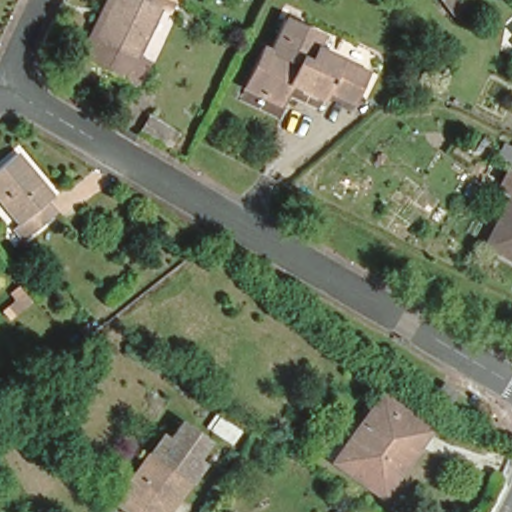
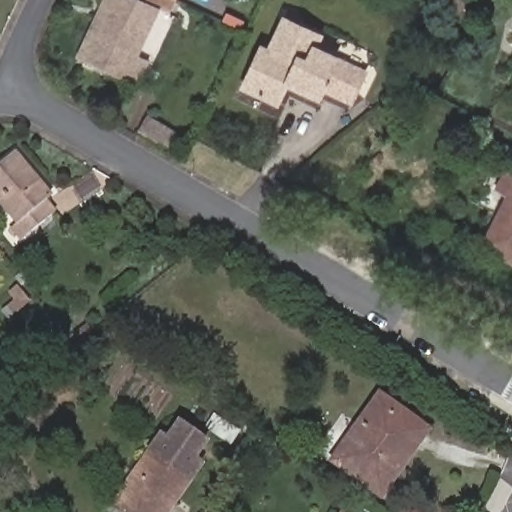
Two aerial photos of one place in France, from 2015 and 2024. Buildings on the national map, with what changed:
unchanged [(166,21),(155,15),(119,86),(80,66),(76,64),(107,0),(159,0),(173,7),(166,21)]
unchanged [(159,0),(176,0),(173,7),(159,0)]
unchanged [(456,23),(436,0),(471,0),(477,7),(456,23)]
unchanged [(282,103),(246,86),(264,46),(273,50),(289,16),(326,34),(319,47),(371,72),(356,102),(328,89),(324,97),(300,85),(292,82),(282,103)]
unchanged [(181,131),(171,149),(138,130),(148,112),(181,131)]
unchanged [(511,197),(511,196),(499,190),(494,189),(507,162),(499,158),(505,146),(512,150),(512,261),(485,247),(511,197)]
unchanged [(51,194),(45,199),(54,211),(20,238),(11,227),(17,222),(0,202),(0,162),(15,150),(51,194)]
unchanged [(34,299),(18,313),(10,304),(17,298),(11,292),(20,284),(34,299)]
unchanged [(457,389),(449,404),(434,395),(442,381),(457,389)]
unchanged [(425,430),(378,494),(332,463),(379,398),(425,430)]
unchanged [(213,406),(244,425),(232,444),(201,423),(213,406)]
unchanged [(122,488),(120,487),(153,442),(159,447),(172,430),(198,449),(173,482),(182,489),(164,512),(155,512),(122,488)]
unchanged [(105,507),(120,487),(122,488),(155,512),(110,512),(105,507)]

